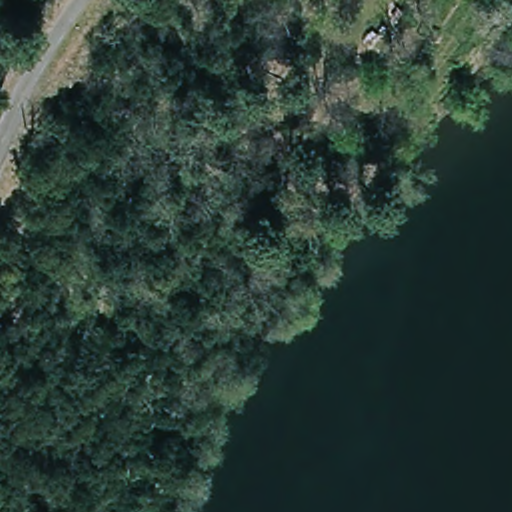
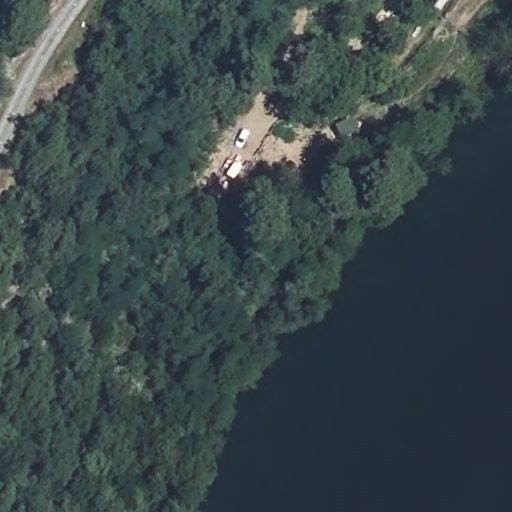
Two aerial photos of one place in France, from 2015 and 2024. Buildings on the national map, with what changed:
[]

